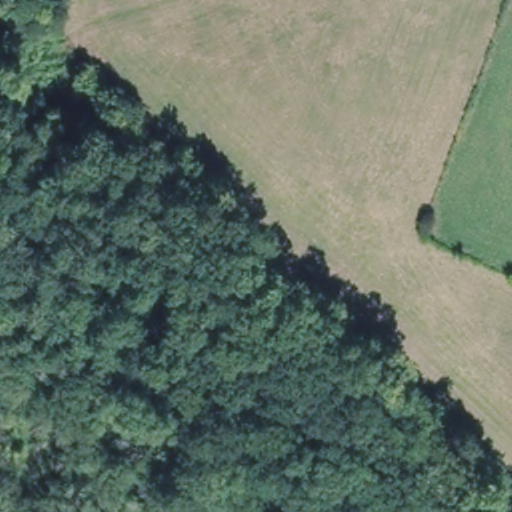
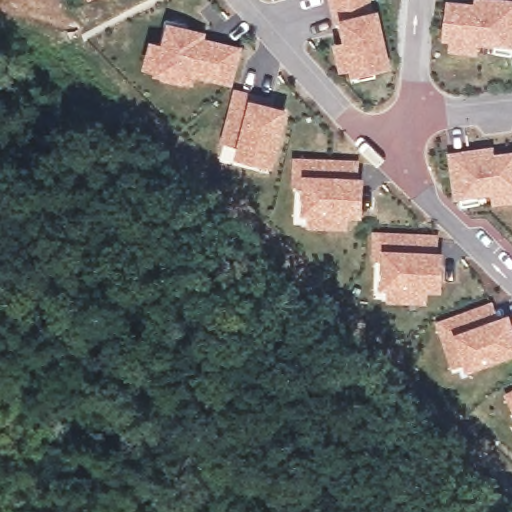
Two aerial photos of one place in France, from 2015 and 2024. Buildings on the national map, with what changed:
new [(355,77),(351,69),(341,71),(334,45),(345,41),(340,22),(334,23),(328,0),(370,0),(373,12),(380,10),(392,66),(355,77)]
new [(512,46),(480,41),(479,52),(451,49),(452,39),(445,38),(449,0),(458,0),(475,2),(475,0),(512,0),(512,46)]
new [(232,85),(196,76),(195,83),(187,81),(186,85),(155,75),(155,72),(143,68),(150,40),(162,44),(169,21),(207,32),(206,36),(244,45),(232,85)]
new [(275,98),(273,105),(290,109),(275,167),(236,156),(238,146),(223,141),(235,88),(275,98)]
new [(512,150),(512,202),(495,204),(493,192),(456,197),(450,151),(495,145),(496,152),(512,150)]
new [(360,176),(365,176),(363,217),(346,217),(346,229),(308,226),(307,212),(302,212),(303,186),(293,185),(294,156),(360,158),(360,176)]
new [(438,251),(445,251),(443,292),(427,291),(426,305),(389,303),(390,287),(384,287),(385,260),(372,259),(373,229),(440,233),(438,251)]
new [(511,313),(512,316),(512,355),(466,368),(464,363),(453,366),(438,320),(493,300),(498,318),(511,313)]
new [(512,388),(512,406),(505,392),(512,388)]

